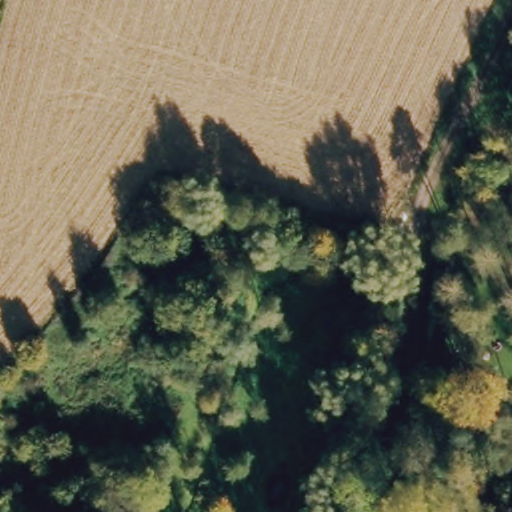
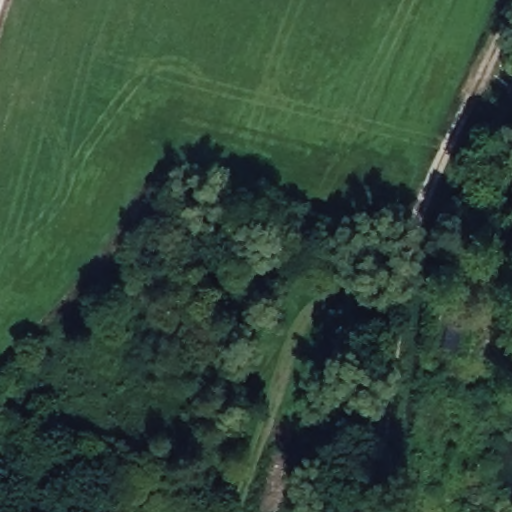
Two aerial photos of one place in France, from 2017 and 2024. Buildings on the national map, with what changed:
unchanged [(457,349),(437,345),(442,319),(462,324),(457,349)]

